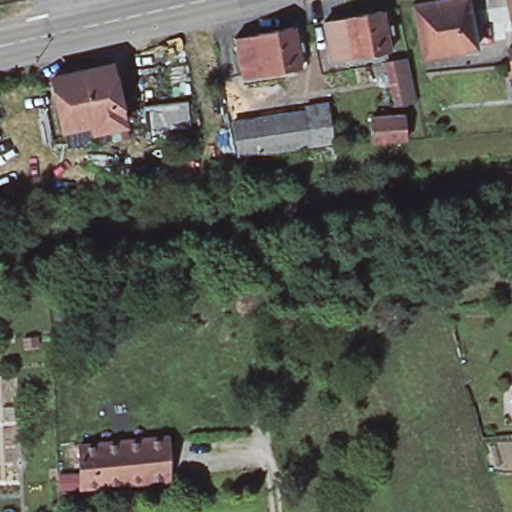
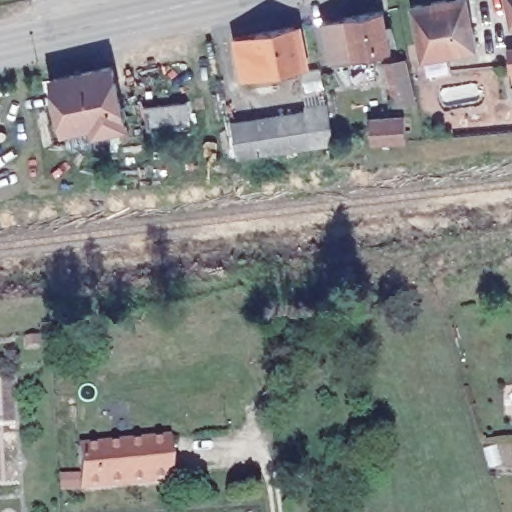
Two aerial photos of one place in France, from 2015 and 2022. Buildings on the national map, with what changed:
unchanged [(466,0),(476,46),(424,56),(413,4),(434,0),(466,0)]
unchanged [(512,0),(512,23),(507,0),(512,0)]
unchanged [(325,21),(347,16),(381,10),(389,50),(355,56),(332,60),(325,21)]
unchanged [(293,27),(300,67),(265,74),(244,78),(235,37),(257,34),(293,27)]
unchanged [(512,59),(512,78),(510,78),(507,60),(512,59)]
unchanged [(406,65),(411,94),(392,97),(387,69),(406,65)]
unchanged [(67,144),(67,129),(62,130),(52,79),(112,66),(124,124),(127,137),(67,144)]
unchanged [(185,100),(190,130),(147,135),(144,106),(185,100)]
unchanged [(236,122),(305,113),(325,110),(330,142),(310,145),(242,155),(236,122)]
unchanged [(402,115),(403,139),(370,141),(369,117),(402,115)]
unchanged [(165,438),(170,480),(79,488),(75,447),(165,438)]

